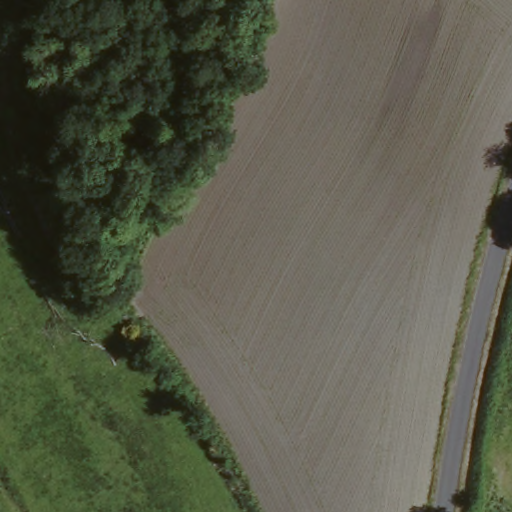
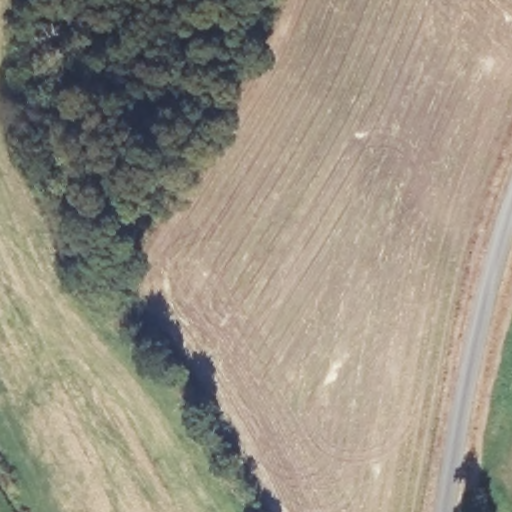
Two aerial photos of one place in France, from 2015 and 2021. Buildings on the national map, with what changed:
[]

